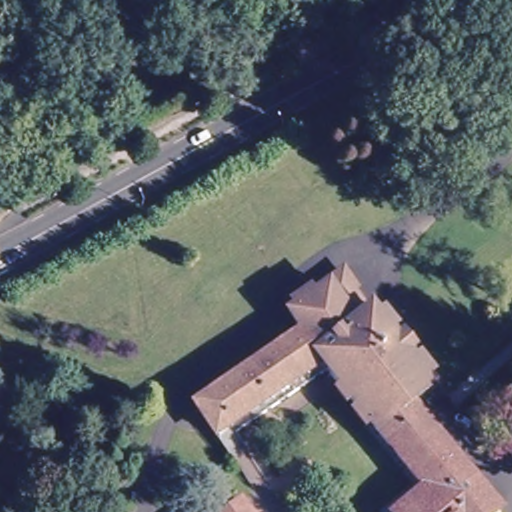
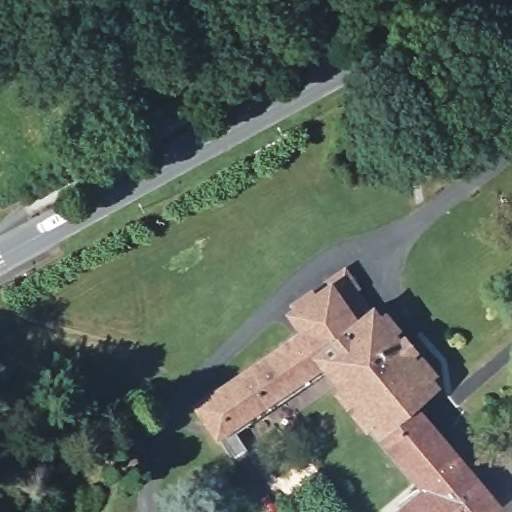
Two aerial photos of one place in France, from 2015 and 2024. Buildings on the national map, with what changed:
unchanged [(241,428),(252,445),(239,455),(201,400),(307,327),(295,308),(335,281),(332,277),(346,265),(362,285),(359,287),(374,305),(377,304),(435,375),(439,380),(417,398),(505,505),(496,512),(400,512),(398,510),(431,484),(377,418),(332,365),(241,428)]
unchanged [(209,511),(225,499),(232,510),(233,510),(241,505),(246,512),(209,512),(209,511)]

